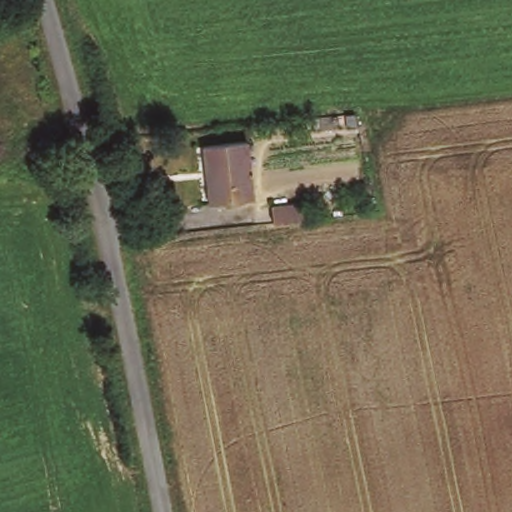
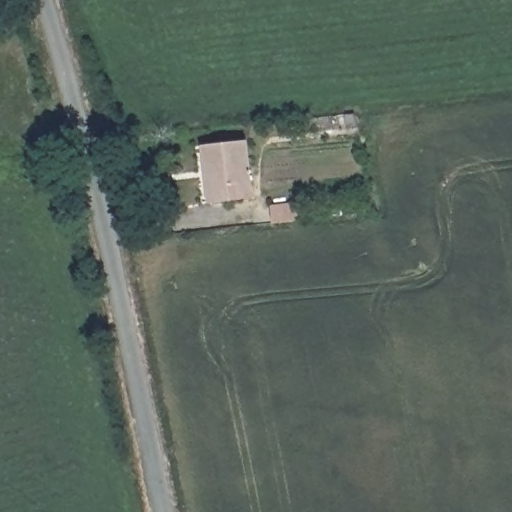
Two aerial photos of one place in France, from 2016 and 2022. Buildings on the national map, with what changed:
unchanged [(210,202),(202,144),(245,140),(250,198),(210,202)]
unchanged [(270,206),(301,204),(303,224),(276,227),(272,227),(270,206)]

